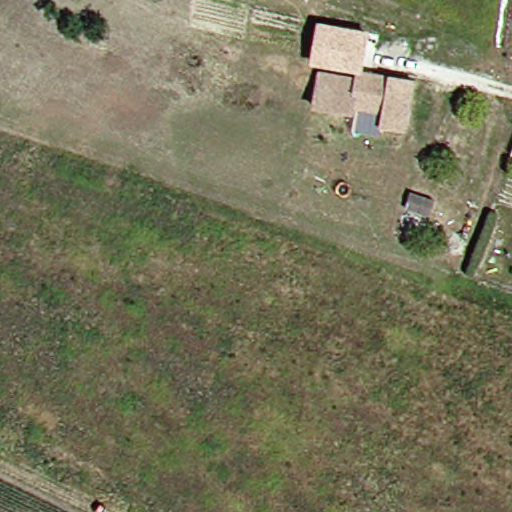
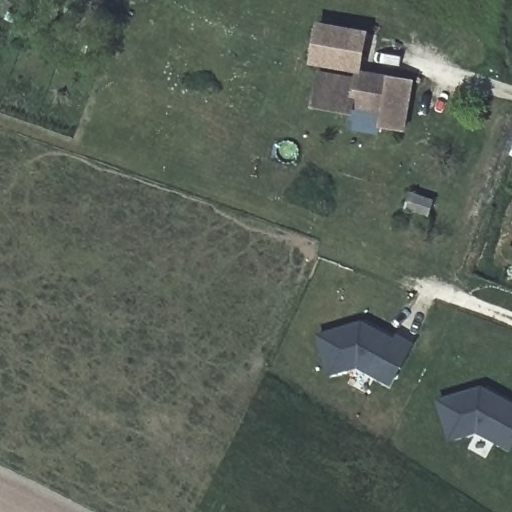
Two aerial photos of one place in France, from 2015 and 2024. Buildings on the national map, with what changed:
new [(317,21),(368,30),(360,72),(356,71),(310,63),(317,21)]
unchanged [(318,72),(355,79),(356,71),(410,82),(401,131),(378,127),(381,112),(351,107),(350,112),(311,105),(318,72)]
unchanged [(512,149),(512,156),(510,155),(512,149)]
unchanged [(437,199),(425,239),(396,228),(409,189),(437,199)]
new [(381,334),(398,342),(400,338),(416,346),(395,389),(361,371),(331,379),(319,336),(363,324),(381,334)]
new [(501,395),(512,401),(512,449),(481,433),(451,441),(439,398),(483,386),(501,395)]

